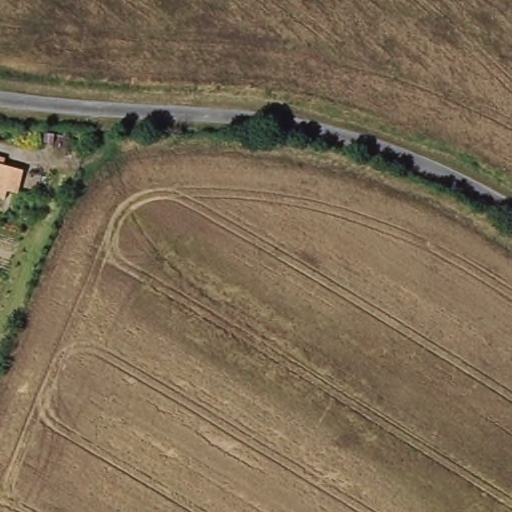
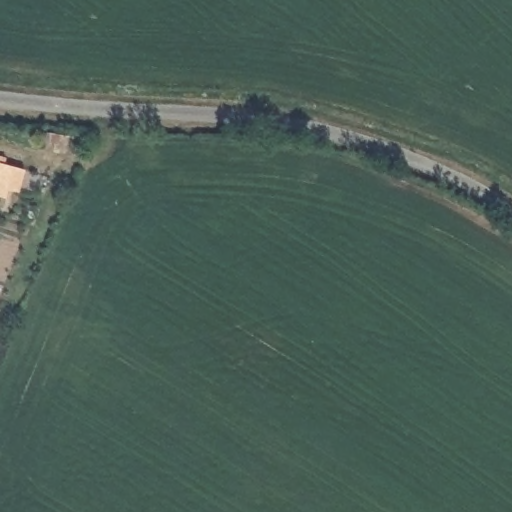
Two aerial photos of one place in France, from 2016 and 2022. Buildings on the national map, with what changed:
unchanged [(8,202),(0,200),(0,167),(16,172),(8,202)]

